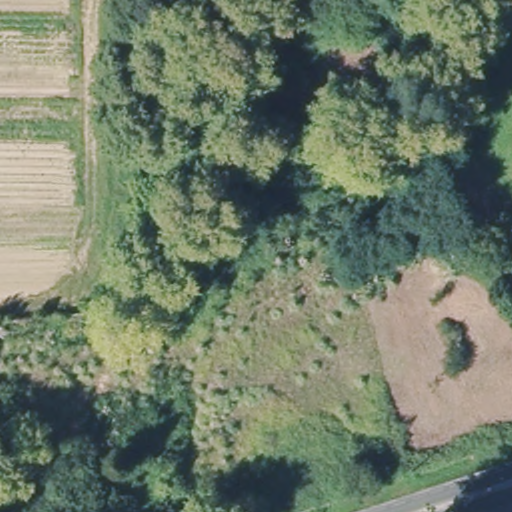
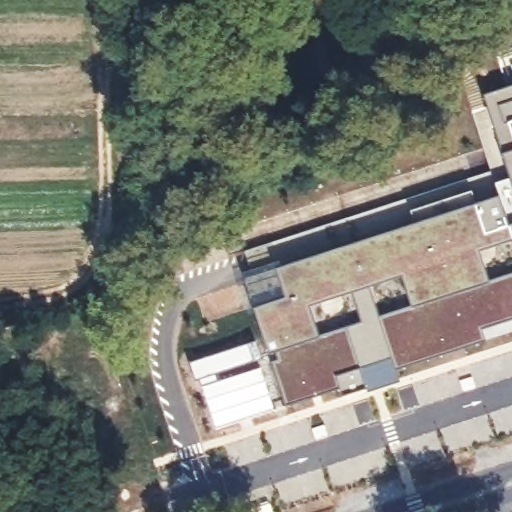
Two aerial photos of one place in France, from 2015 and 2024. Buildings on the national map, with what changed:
new [(494,137),(482,93),(512,84),(512,148),(500,151),(504,165),(491,170),(481,141),(494,137)]
new [(493,337),(491,333),(486,335),(487,338),(440,356),(443,362),(400,378),(379,313),(408,303),(399,275),(352,289),(309,304),(317,326),(320,333),(272,352),(270,353),(253,305),(243,279),(275,267),(292,260),(413,219),(409,209),(469,187),(466,179),(491,170),(494,179),(507,174),(504,165),(500,151),(512,148),(512,331),(493,337)]
demolished [(388,309),(311,334),(286,273),(365,244),(388,309)]
new [(352,289),(399,275),(408,303),(379,313),(400,378),(366,391),(364,386),(343,324),(326,330),(323,324),(317,326),(309,304),(352,289)]
demolished [(149,285),(147,320),(102,321),(103,284),(120,284),(149,285)]
demolished [(68,336),(110,334),(112,367),(137,365),(138,398),(111,402),(11,412),(2,350),(0,350),(0,321),(65,312),(68,336)]
new [(275,359),(272,352),(320,333),(326,330),(343,324),(364,386),(340,392),(338,387),(286,403),(272,360),(275,359)]
new [(249,342),(256,361),(249,363),(199,378),(196,379),(189,361),(249,342)]
demolished [(244,512),(196,512),(201,356),(250,359),(244,512)]
new [(249,363),(251,368),(260,365),(274,408),(215,427),(199,378),(249,363)]
new [(201,512),(178,512),(175,504),(190,499),(188,496),(194,494),(201,512)]

